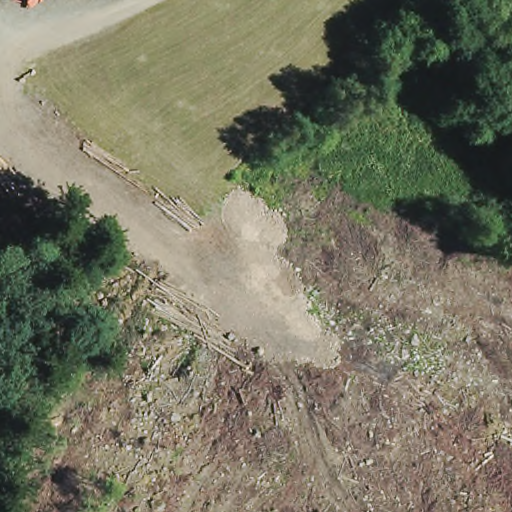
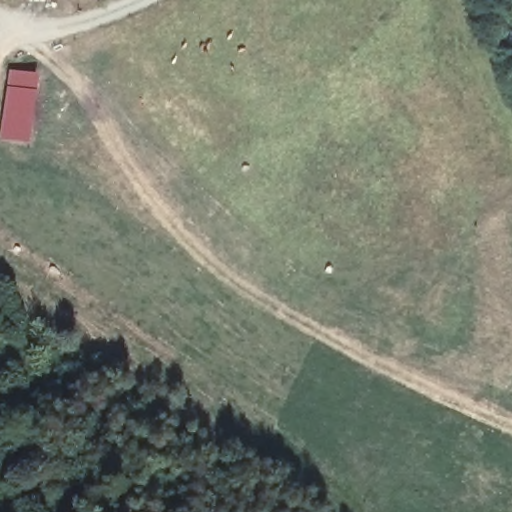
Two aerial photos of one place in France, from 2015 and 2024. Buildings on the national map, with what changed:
new [(0,141),(0,126),(7,72),(34,75),(27,144),(0,141)]

